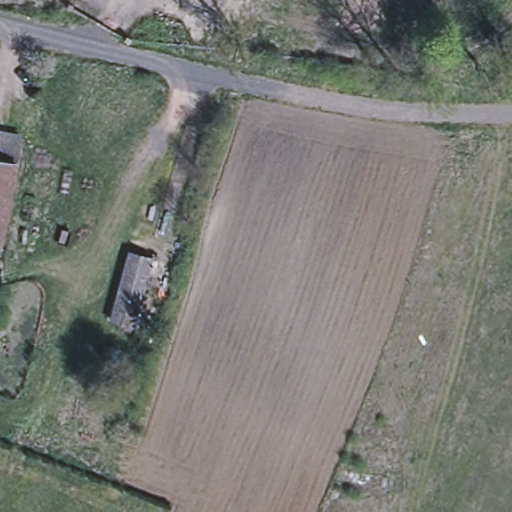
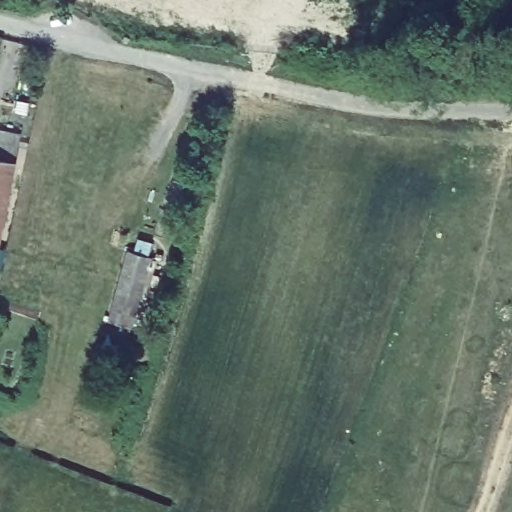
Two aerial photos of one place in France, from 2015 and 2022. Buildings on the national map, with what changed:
unchanged [(0,127),(24,132),(3,241),(1,251),(0,251),(0,130),(0,127)]
unchanged [(153,255),(133,324),(110,316),(128,250),(153,255)]

